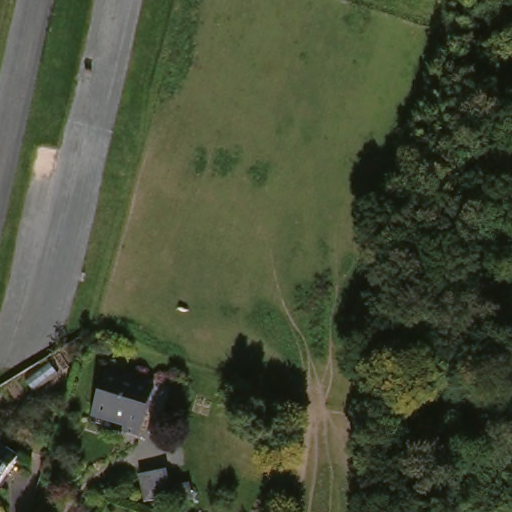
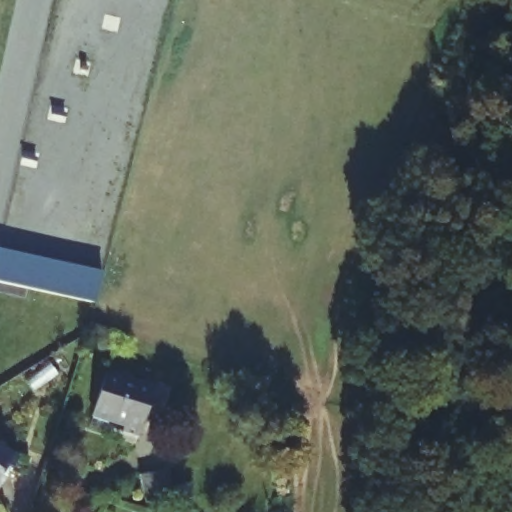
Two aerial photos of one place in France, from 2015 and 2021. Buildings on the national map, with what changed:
new [(94,298),(0,280),(0,251),(99,270),(94,298)]
unchanged [(130,366),(127,379),(165,389),(151,442),(129,435),(133,422),(119,418),(115,432),(97,426),(115,361),(130,366)]
unchanged [(0,489),(0,444),(22,460),(0,489)]
new [(179,478),(184,505),(157,509),(152,482),(179,478)]

